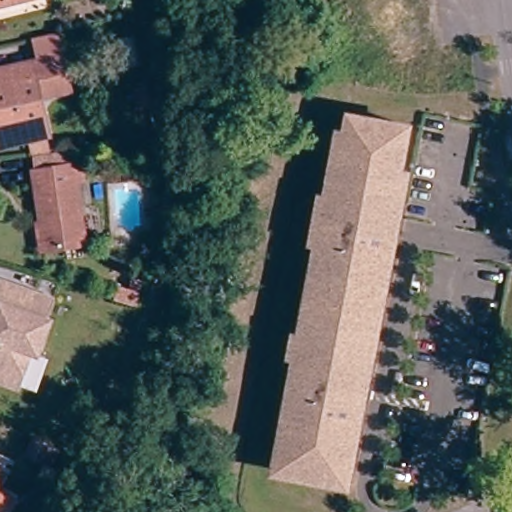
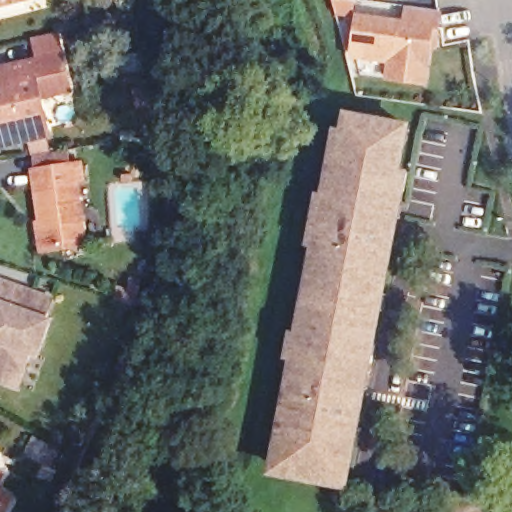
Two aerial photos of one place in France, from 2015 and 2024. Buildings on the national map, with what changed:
unchanged [(0,6),(0,0),(23,0),(0,6)]
new [(407,27),(409,11),(441,16),(439,32),(436,52),(431,52),(426,87),(389,82),(392,65),(358,61),(355,51),(359,21),(407,27)]
unchanged [(35,62),(30,40),(39,38),(58,34),(63,57),(71,91),(41,97),(50,136),(47,137),(50,149),(31,154),(28,141),(0,147),(0,71),(35,62)]
unchanged [(339,475),(338,477),(283,467),(284,464),(278,463),(281,447),(287,412),(298,355),(289,353),(294,327),(303,328),(304,325),(309,325),(309,321),(301,320),(306,293),(314,296),(317,282),(317,280),(312,279),(319,242),(311,240),(320,189),(328,190),(335,154),(333,153),(339,123),(347,125),(350,110),(408,121),(400,165),(410,167),(406,187),(401,213),(388,211),(385,226),(395,228),(384,287),(389,288),(386,306),(381,305),(380,307),(376,306),(370,337),(378,338),(374,358),(369,385),(356,382),(353,397),(363,400),(351,460),(350,460),(347,476),(339,475)]
unchanged [(38,224),(40,224),(33,172),(40,171),(38,157),(69,152),(71,167),(83,165),(85,182),(77,184),(86,246),(45,252),(42,252),(38,224)]
unchanged [(52,300),(45,320),(50,321),(38,356),(30,353),(18,388),(0,382),(0,282),(52,300)]
unchanged [(49,467),(25,453),(34,438),(58,452),(49,467)]
unchanged [(3,465),(0,471),(0,463),(3,465)]

